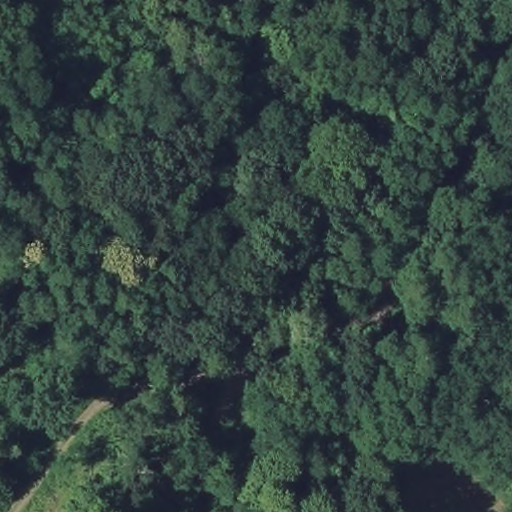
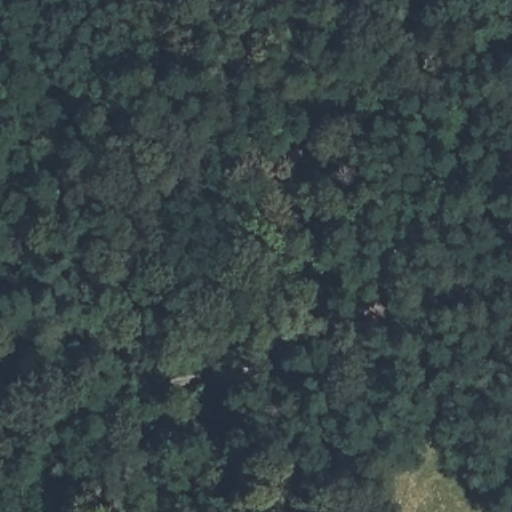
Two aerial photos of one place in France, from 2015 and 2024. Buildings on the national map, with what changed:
unchanged [(345,376),(326,430),(294,417),(315,364),(345,376)]

